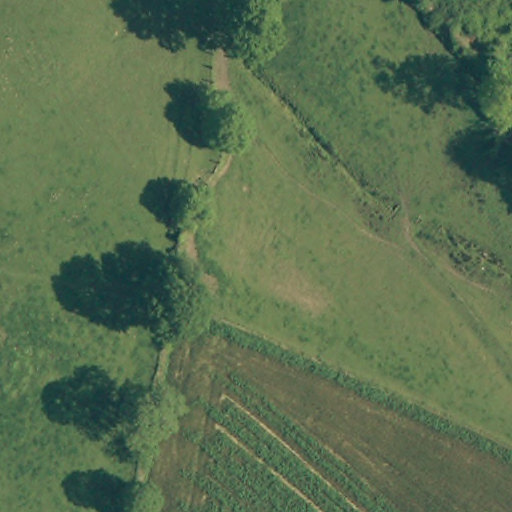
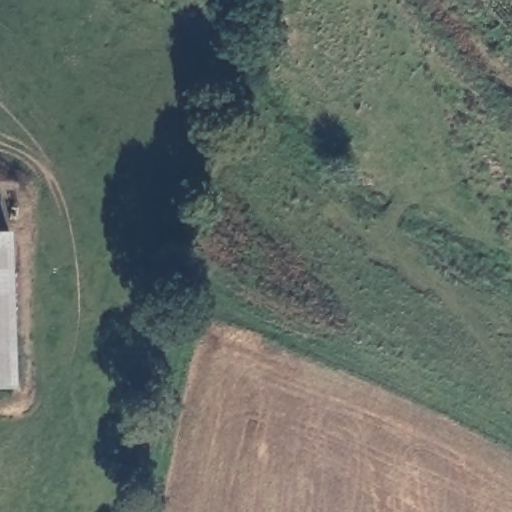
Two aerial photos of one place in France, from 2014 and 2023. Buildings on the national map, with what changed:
new [(10,231),(14,386),(0,387),(0,231),(10,231)]

